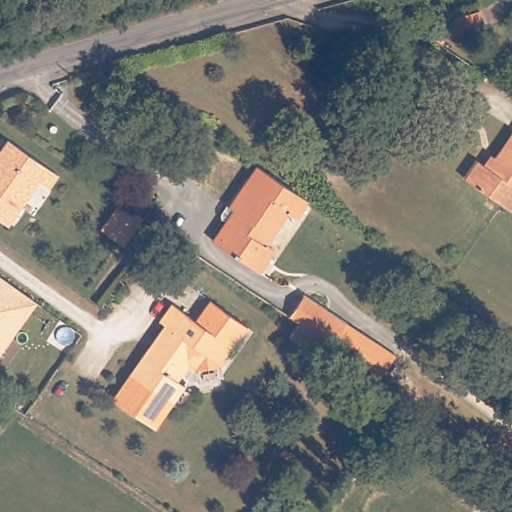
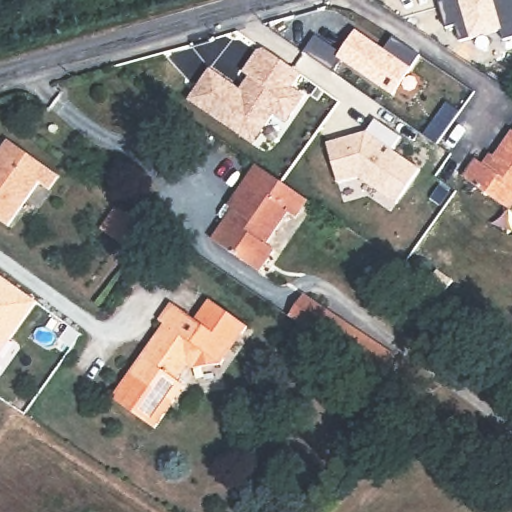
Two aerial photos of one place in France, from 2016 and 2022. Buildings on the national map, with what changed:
unchanged [(447,18),(480,9),(484,26),(451,35),(447,18)]
new [(316,34),(341,50),(357,29),(385,48),(393,37),(421,55),(393,96),(340,60),(333,70),(304,52),(316,34)]
new [(242,132),(190,96),(211,65),(245,88),(254,74),(244,68),(250,60),(257,58),(294,83),(285,96),(297,104),(289,117),(284,124),(272,116),(263,128),(255,141),(242,132)]
new [(367,131),(375,119),(400,135),(391,148),(422,169),(397,204),(359,179),(338,184),(326,143),(367,131)]
unchanged [(499,151),(506,141),(512,133),(512,203),(471,174),(482,156),(492,162),(499,151)]
unchanged [(59,170),(49,184),(39,178),(7,220),(0,214),(0,145),(7,135),(59,170)]
unchanged [(258,160),(308,195),(297,212),(288,206),(266,238),(275,244),(260,266),(214,234),(227,214),(222,211),(222,207),(228,199),(230,200),(258,160)]
unchanged [(118,202),(140,218),(121,246),(99,230),(118,202)]
unchanged [(35,303),(0,352),(0,279),(1,279),(35,303)]
unchanged [(288,317),(303,296),(347,326),(332,347),(316,336),(305,349),(288,338),(298,324),(288,317)]
unchanged [(161,320),(172,304),(196,321),(211,300),(248,327),(221,365),(195,369),(189,365),(179,379),(186,384),(156,428),(113,398),(150,347),(154,340),(165,324),(161,320)]
unchanged [(393,358),(379,379),(370,373),(332,347),(347,326),(393,358)]

